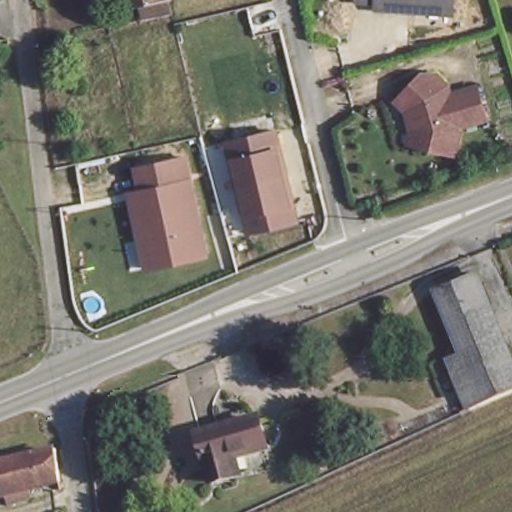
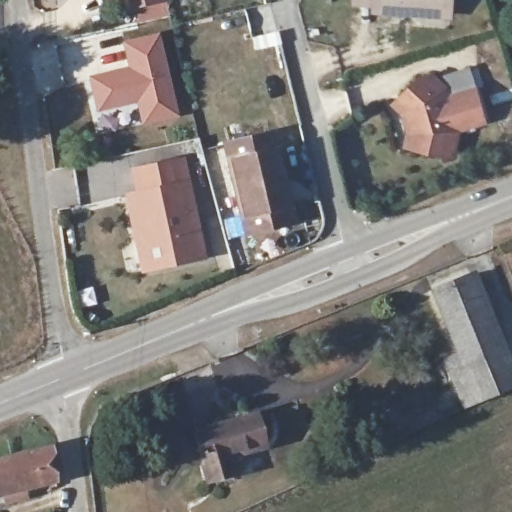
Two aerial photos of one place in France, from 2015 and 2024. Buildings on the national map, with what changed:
unchanged [(162,8),(137,14),(133,0),(160,0),(162,8)]
unchanged [(417,10),(378,13),(378,6),(358,8),(357,0),(454,0),(455,6),(417,10)]
new [(125,64),(120,40),(158,31),(174,93),(178,119),(140,127),(135,105),(95,113),(86,75),(125,64)]
unchanged [(417,135),(411,116),(402,106),(408,100),(430,80),(442,77),(453,89),(456,98),(483,91),(492,123),(465,131),(465,133),(460,159),(422,151),(413,149),(417,135)]
unchanged [(297,224),(249,233),(248,223),(243,223),(230,160),(234,158),(230,139),(277,130),(297,224)]
unchanged [(207,259),(140,273),(125,195),(133,194),(129,168),(185,156),(207,259)]
unchanged [(467,358),(435,284),(472,268),(512,364),(512,381),(465,404),(450,366),(467,358)]
unchanged [(200,421),(260,420),(259,448),(223,449),(222,472),(198,471),(200,421)]
unchanged [(0,487),(0,455),(54,442),(58,475),(0,487)]

